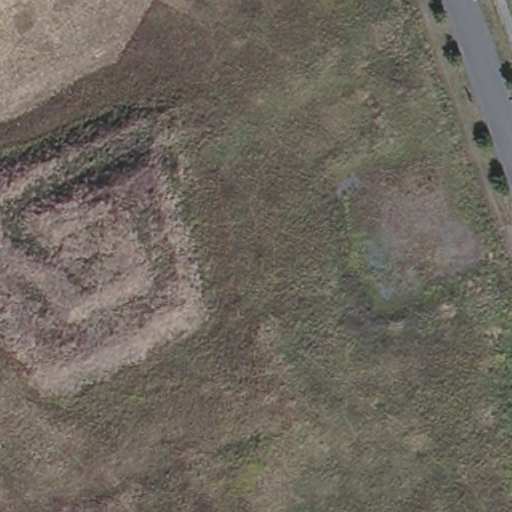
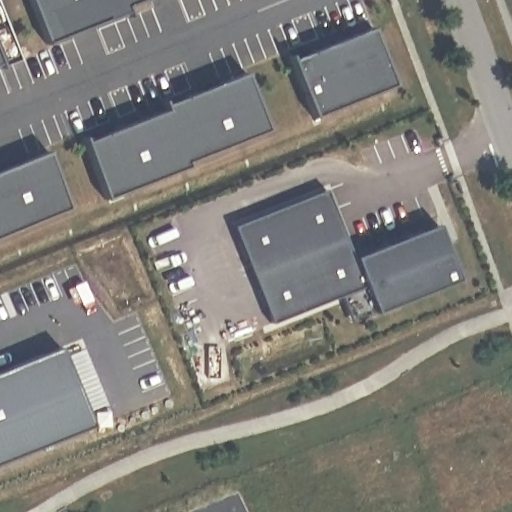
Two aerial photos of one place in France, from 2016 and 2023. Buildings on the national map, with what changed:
new [(42,0),(135,0),(138,4),(56,37),(42,0)]
new [(378,29),(397,83),(318,110),(300,57),(378,29)]
new [(0,61),(0,35),(9,57),(0,61)]
new [(98,141),(172,110),(169,106),(259,70),(279,123),(196,154),(201,162),(119,194),(98,141)]
new [(0,235),(0,171),(54,152),(74,207),(0,235)]
new [(329,187),(357,257),(441,223),(464,277),(353,322),(340,295),(273,322),(234,228),(329,187)]
new [(101,427),(0,463),(0,375),(69,347),(101,427)]

